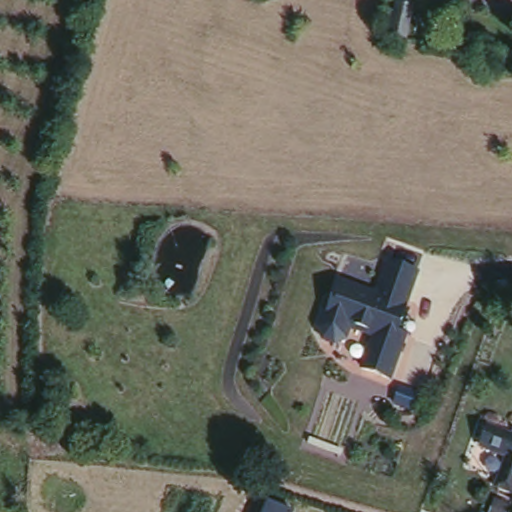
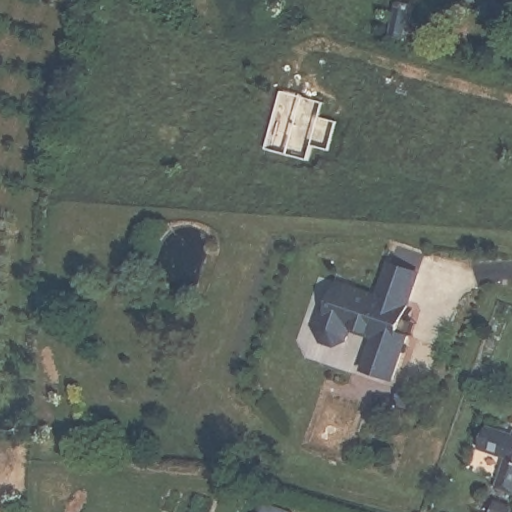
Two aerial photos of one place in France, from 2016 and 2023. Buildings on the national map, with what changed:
unchanged [(416,11),(407,40),(389,35),(392,27),(386,25),(390,14),(396,15),(398,7),(416,11)]
new [(322,99),(317,120),(336,123),(327,152),(309,146),(304,162),(264,151),(281,92),(322,99)]
unchanged [(420,273),(400,332),(409,335),(393,376),(358,364),(368,338),(351,332),(347,340),(337,346),(321,338),(317,327),(334,279),(375,290),(385,263),(420,273)]
unchanged [(494,422),(512,427),(512,449),(487,442),(494,422)]
unchanged [(503,481),(512,451),(512,484),(503,481)]
unchanged [(265,512),(268,505),(290,512),(265,512)]

